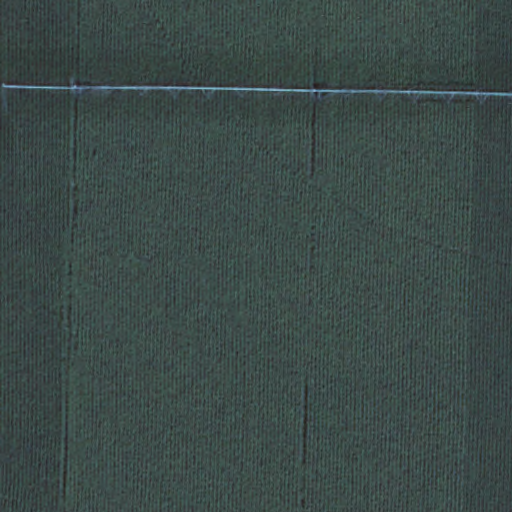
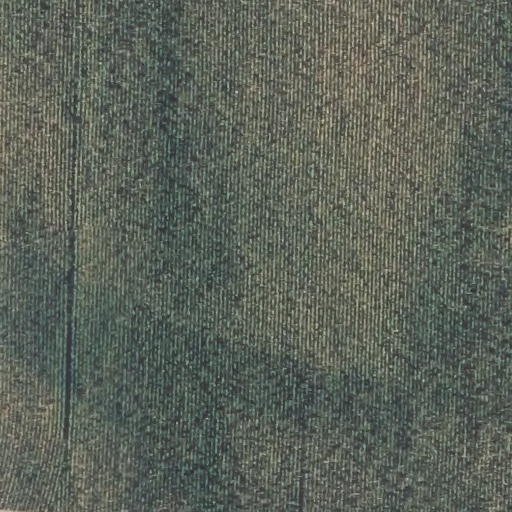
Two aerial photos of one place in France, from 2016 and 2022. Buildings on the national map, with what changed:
[]

